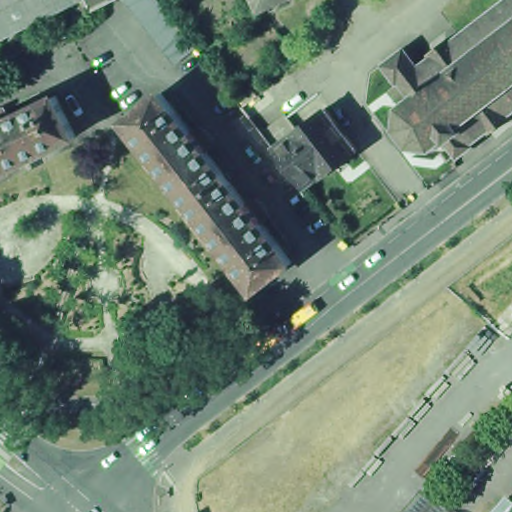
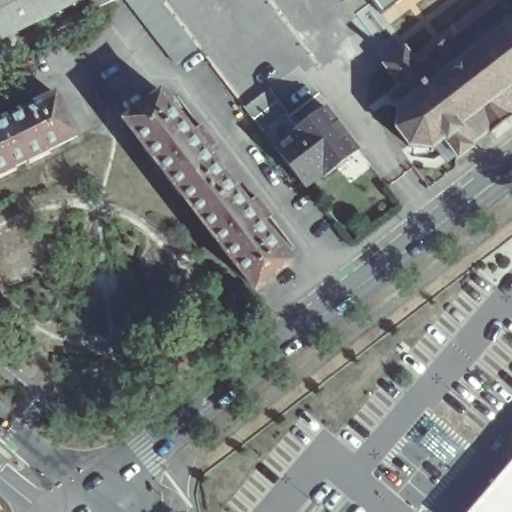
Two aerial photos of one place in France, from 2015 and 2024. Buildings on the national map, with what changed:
unchanged [(0,0),(79,0),(0,40),(0,0)]
unchanged [(91,0),(115,0),(95,10),(91,0)]
unchanged [(177,64),(140,18),(127,1),(127,0),(161,0),(197,48),(177,64)]
demolished [(281,0),(262,9),(258,0),(281,0)]
new [(371,0),(404,0),(383,16),(371,0)]
unchanged [(420,60),(431,51),(430,50),(430,49),(430,48),(452,31),(452,32),(453,31),(454,33),(470,21),(469,20),(472,17),(473,19),(489,7),(487,6),(490,3),(492,5),(497,0),(512,0),(512,108),(512,113),(492,128),(491,127),(490,128),(489,126),(473,139),(475,141),(459,153),(445,135),(434,143),(435,145),(432,145),(431,143),(412,141),(412,143),(409,141),(410,140),(398,125),(396,125),(395,121),(397,121),(400,103),(397,101),(400,99),(401,100),(412,91),(400,77),(399,79),(384,59),(406,41),(420,60)]
unchanged [(267,88),(276,100),(252,119),(243,106),(267,88)]
unchanged [(192,205),(182,193),(180,195),(166,177),(169,175),(160,163),(157,165),(144,147),(146,145),(127,120),(163,92),(194,133),(203,126),(216,143),(207,150),(228,177),(192,205)]
unchanged [(11,117),(57,95),(77,136),(49,150),(50,153),(30,163),(29,160),(15,166),(17,169),(0,177),(0,111),(7,108),(11,117)]
unchanged [(364,150),(329,177),(327,175),(310,188),(280,148),(268,132),(292,114),(304,130),(332,108),(364,150)]
unchanged [(249,204),(258,197),(271,214),(262,221),(294,261),(257,290),(238,265),(235,266),(222,248),(224,246),(215,235),(212,237),(199,219),(201,217),(192,205),(228,177),(249,204)]
new [(512,462),(512,512),(470,512),(512,462)]

